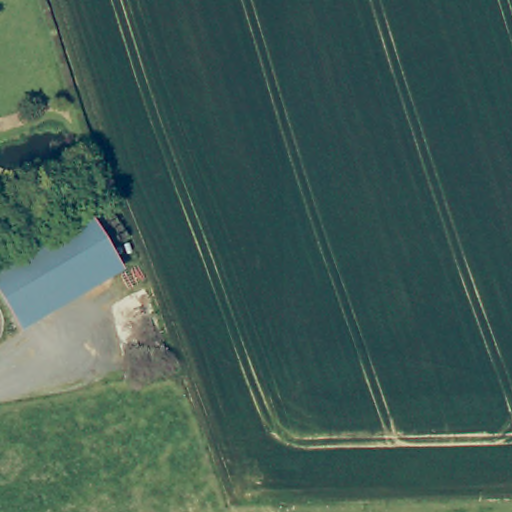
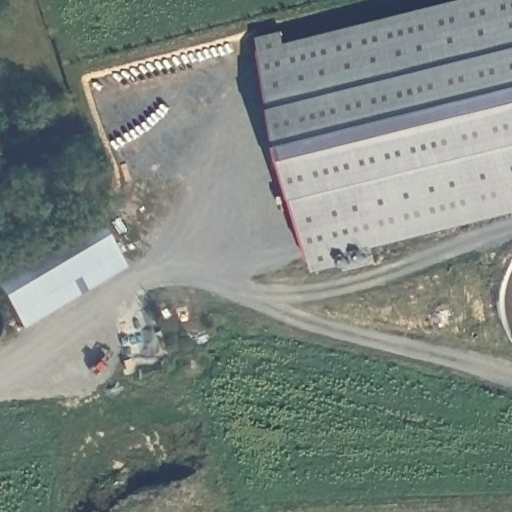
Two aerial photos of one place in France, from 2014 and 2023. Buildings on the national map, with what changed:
new [(344,267),(316,273),(258,39),(283,32),(286,45),(468,0),(512,0),(512,216),(342,257),(344,267)]
unchanged [(91,216),(117,274),(15,330),(0,301),(0,264),(91,216)]

